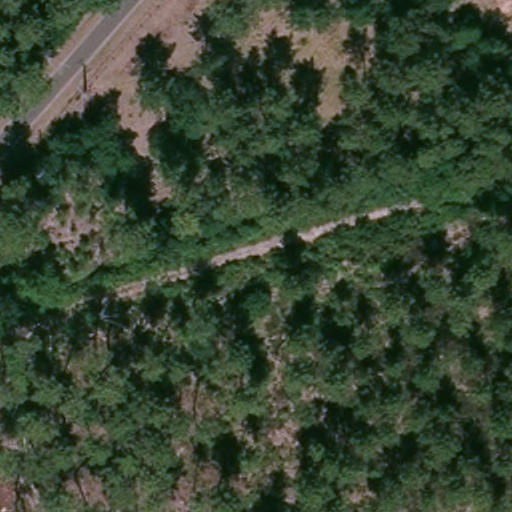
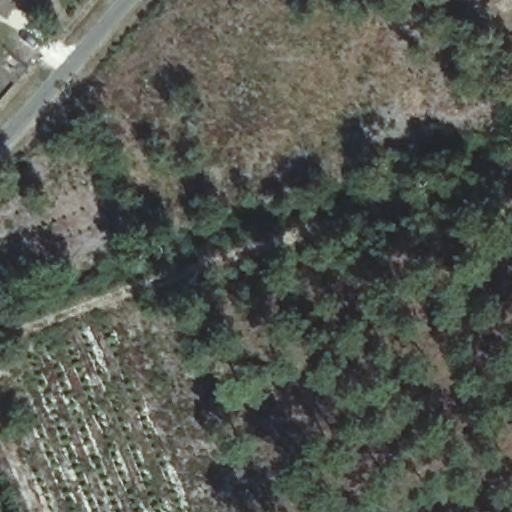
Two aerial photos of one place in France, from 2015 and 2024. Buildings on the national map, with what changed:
unchanged [(498,3),(497,0),(503,0),(498,3)]

